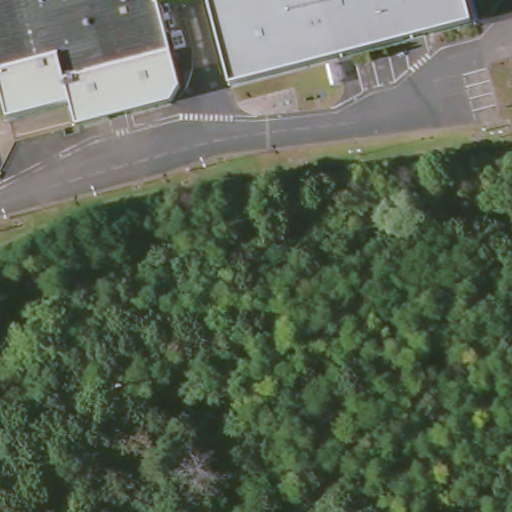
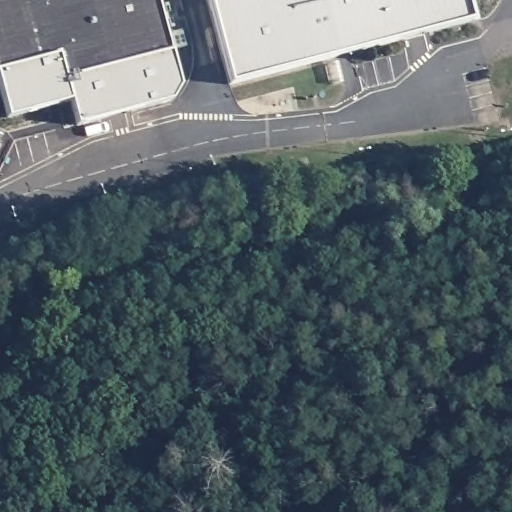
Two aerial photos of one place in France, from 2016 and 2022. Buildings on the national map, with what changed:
unchanged [(0,0),(171,0),(154,5),(176,86),(161,103),(75,127),(68,104),(7,120),(0,95),(0,0)]
unchanged [(475,20),(234,85),(211,0),(470,0),(475,20)]

